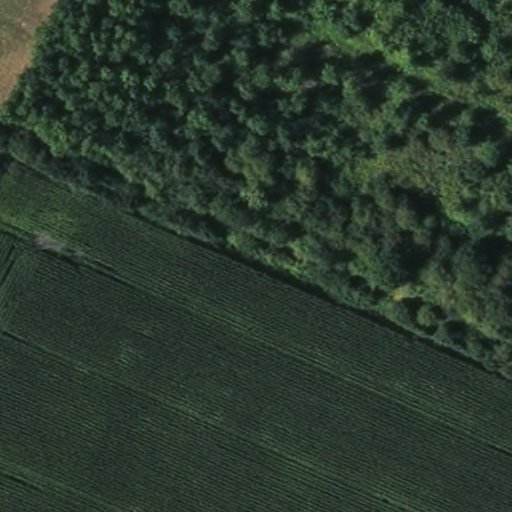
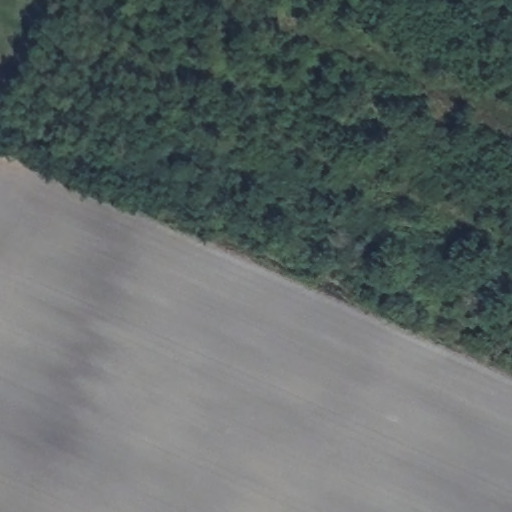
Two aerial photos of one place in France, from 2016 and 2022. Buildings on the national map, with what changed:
[]

